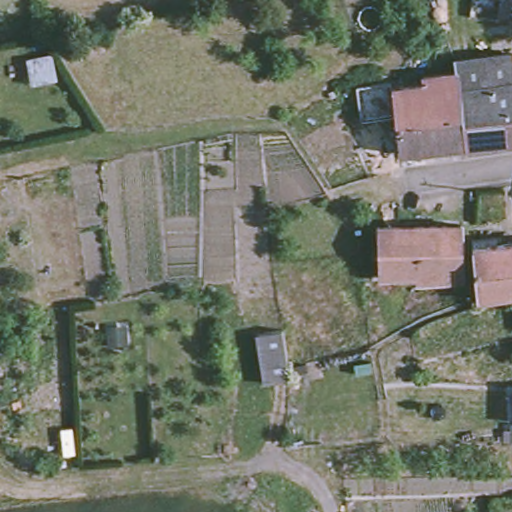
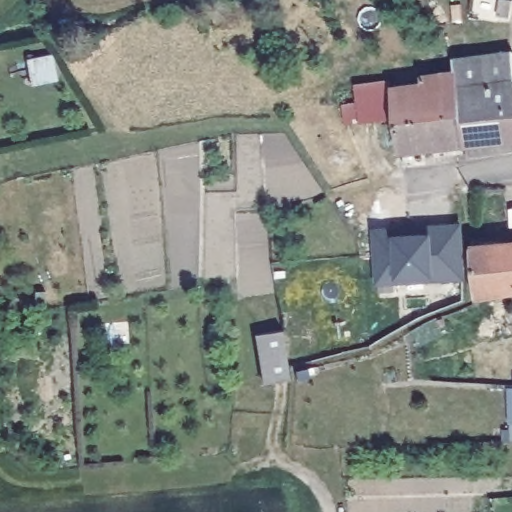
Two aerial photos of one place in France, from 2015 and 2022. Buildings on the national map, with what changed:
unchanged [(498,15),(501,0),(512,0),(512,7),(510,18),(498,15)]
unchanged [(494,92),(504,142),(462,146),(452,71),(451,60),(510,53),(512,74),(512,90),(494,92)]
unchanged [(417,75),(452,71),(462,146),(397,154),(392,118),(379,120),(372,90),(387,89),(418,84),(417,75)]
unchanged [(504,142),(494,92),(512,90),(512,141),(504,142)]
unchanged [(417,277),(416,270),(378,270),(377,220),(464,219),(465,274),(417,277)]
unchanged [(477,293),(476,274),(472,241),(502,239),(512,238),(512,289),(477,293)]
unchanged [(259,336),(262,335),(283,332),(289,366),(291,379),(265,383),(259,336)]

